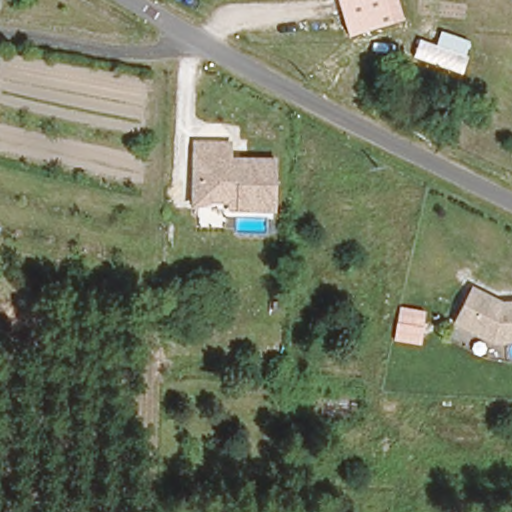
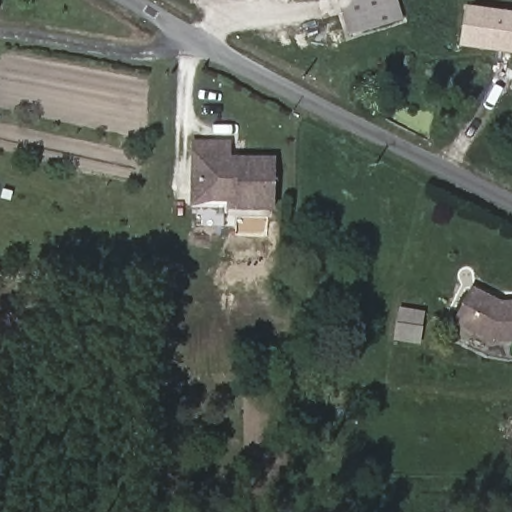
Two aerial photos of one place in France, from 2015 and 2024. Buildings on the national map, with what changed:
unchanged [(404,19),(350,36),(339,0),(399,0),(404,19)]
new [(512,55),(459,48),(465,7),(512,14),(512,55)]
unchanged [(277,214),(228,211),(227,206),(192,205),(192,140),(232,142),(233,158),(277,158),(277,214)]
unchanged [(454,325),(473,287),(506,304),(512,303),(512,346),(496,347),(454,325)]

